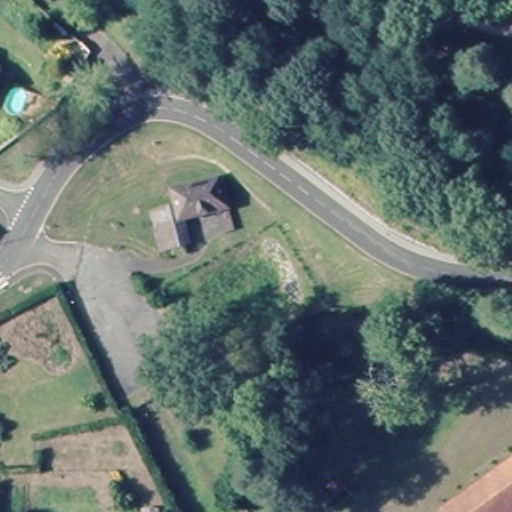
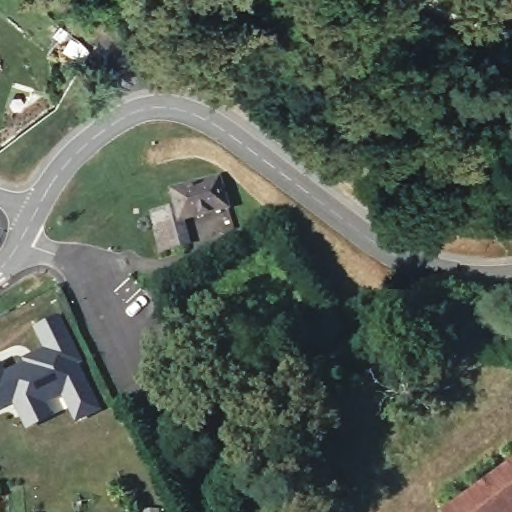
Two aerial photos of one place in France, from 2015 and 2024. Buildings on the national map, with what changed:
unchanged [(197,244),(188,246),(163,253),(158,228),(156,229),(152,213),(160,211),(175,207),(170,191),(221,173),(232,206),(188,219),(192,230),(197,244)]
new [(26,425),(18,407),(13,398),(0,404),(0,367),(3,373),(27,361),(26,361),(24,357),(32,353),(46,347),(35,326),(56,315),(78,358),(74,360),(97,406),(78,415),(70,400),(68,401),(62,390),(42,401),(49,414),(26,425)]
unchanged [(512,512),(440,512),(512,462),(512,512)]
unchanged [(327,470),(348,490),(329,507),(312,489),(327,470)]

